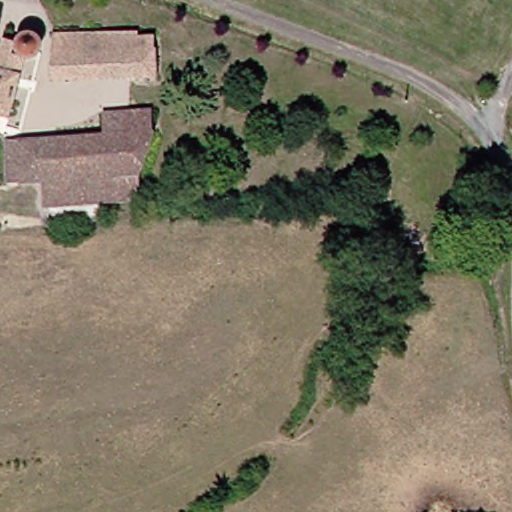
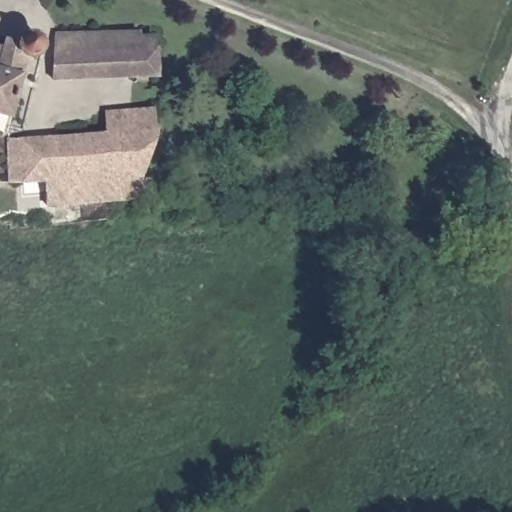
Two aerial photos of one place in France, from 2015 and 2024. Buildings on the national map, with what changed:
unchanged [(149,82),(45,85),(47,38),(97,39),(129,38),(131,44),(148,44),(149,82)]
unchanged [(12,49),(15,43),(21,40),(29,41),(33,44),(36,51),(31,60),(18,63),(2,123),(0,122),(0,47),(12,49)]
unchanged [(107,142),(107,120),(156,117),(158,137),(107,142)]
unchanged [(47,211),(47,187),(45,145),(107,142),(158,137),(146,174),(145,204),(47,211)]
unchanged [(8,148),(45,145),(47,187),(11,189),(8,148)]

